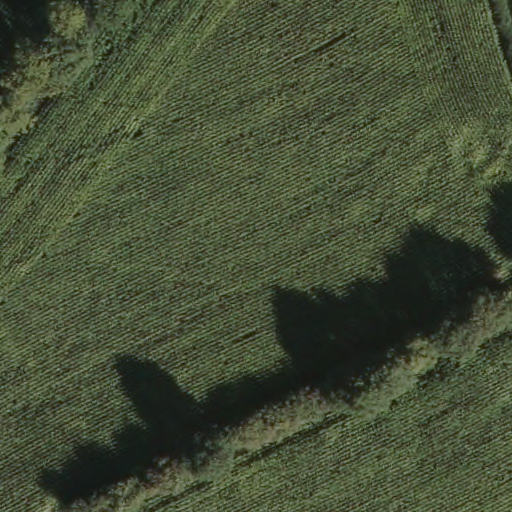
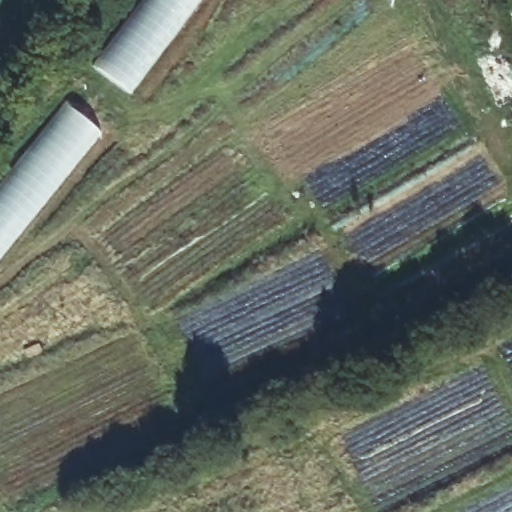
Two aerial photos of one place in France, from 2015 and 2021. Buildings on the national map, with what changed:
new [(141,0),(199,0),(130,93),(92,65),(141,0)]
new [(100,131),(0,260),(0,183),(63,102),(100,131)]

